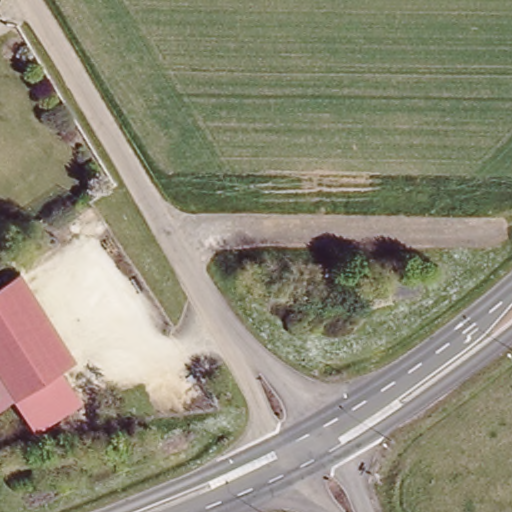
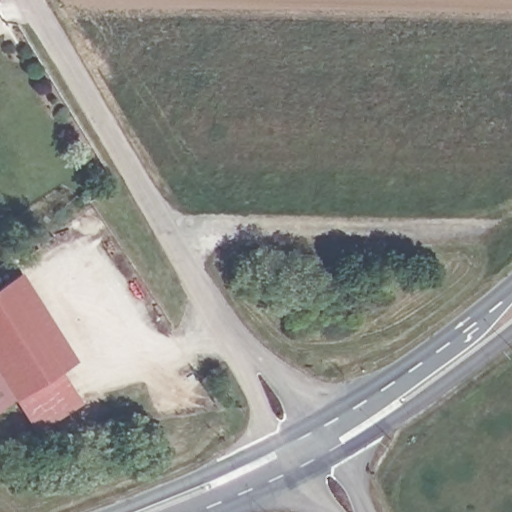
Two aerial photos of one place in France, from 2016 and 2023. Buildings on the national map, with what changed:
unchanged [(7,398),(5,394),(0,385),(0,282),(17,272),(70,359),(7,398)]
unchanged [(32,382),(59,366),(82,405),(38,428),(15,393),(32,382)]
unchanged [(0,397),(0,385),(5,394),(0,397)]

